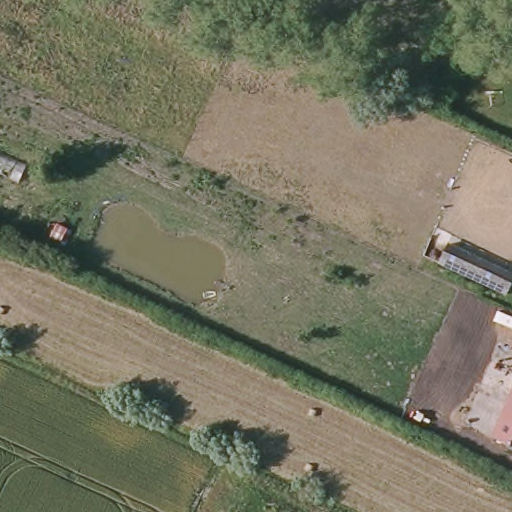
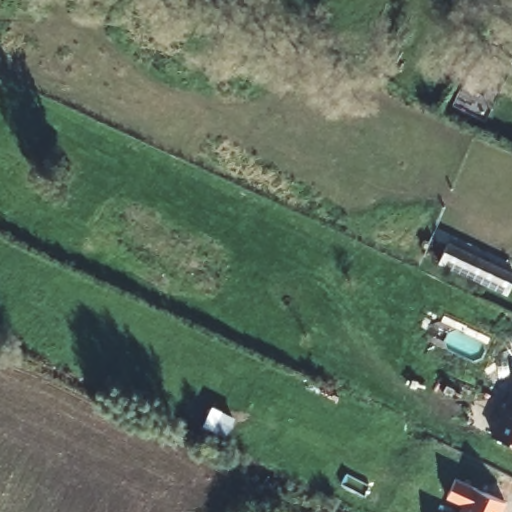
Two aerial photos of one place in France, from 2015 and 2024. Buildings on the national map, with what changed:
unchanged [(512,293),(445,262),(452,244),(512,271),(512,293)]
unchanged [(512,394),(512,444),(493,436),(512,394)]
new [(461,503),(446,496),(455,477),(506,502),(501,512),(458,512),(461,503)]

